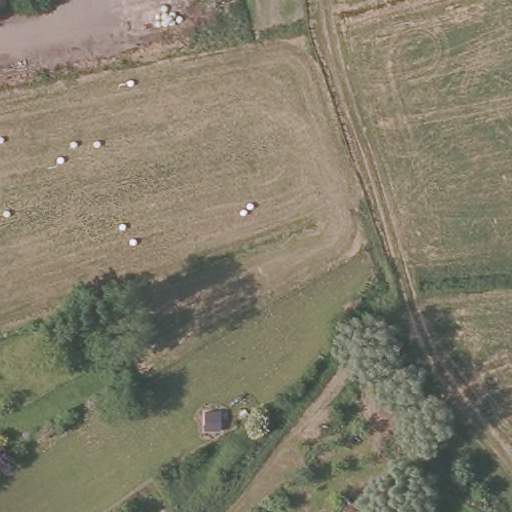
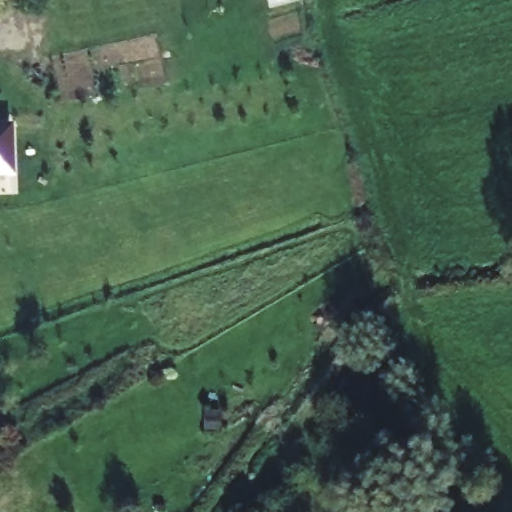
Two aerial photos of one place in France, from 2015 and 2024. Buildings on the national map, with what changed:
new [(14,175),(0,176),(0,128),(11,127),(14,175)]

